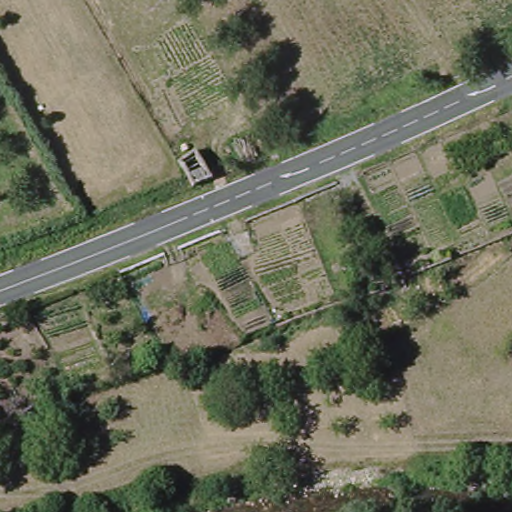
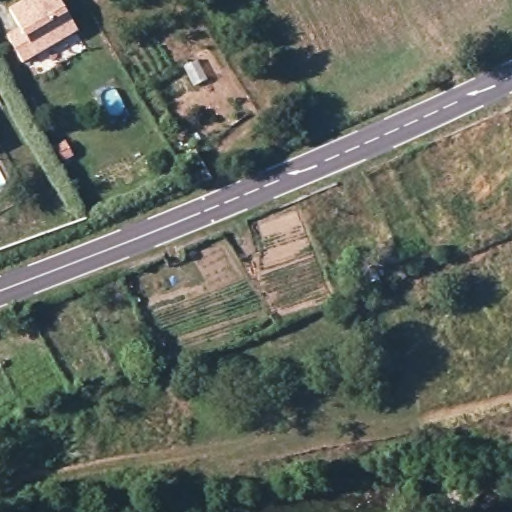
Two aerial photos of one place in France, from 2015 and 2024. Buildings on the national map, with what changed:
new [(78,32),(23,64),(7,36),(19,28),(8,8),(22,0),(59,0),(78,32)]
demolished [(204,154),(220,181),(199,189),(184,162),(204,154)]

